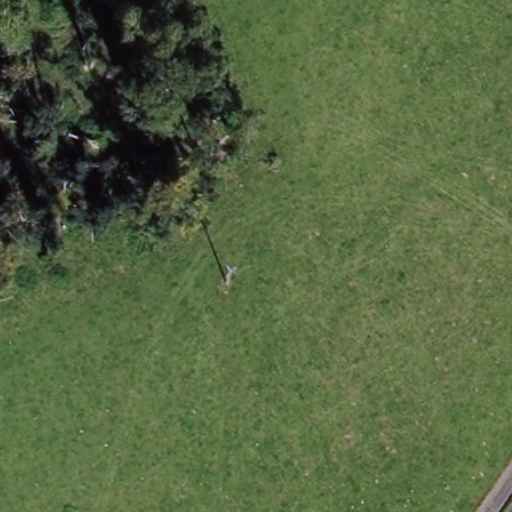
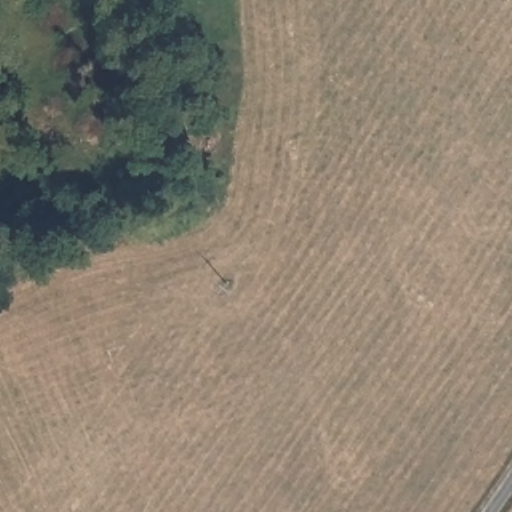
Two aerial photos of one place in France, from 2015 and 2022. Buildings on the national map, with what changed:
[]

